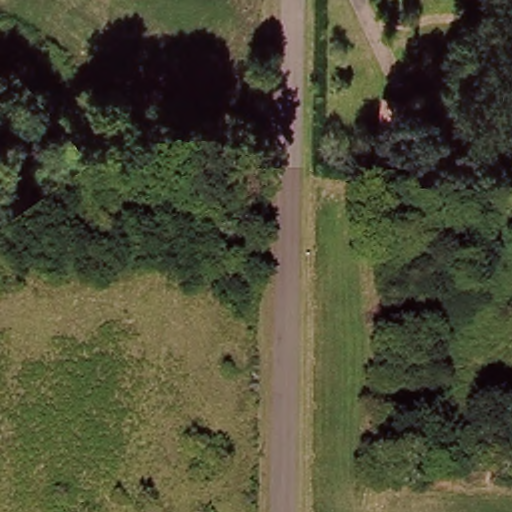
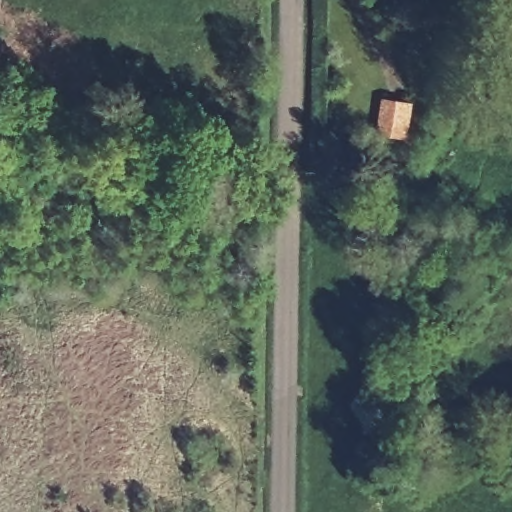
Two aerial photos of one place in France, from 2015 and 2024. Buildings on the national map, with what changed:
new [(378,135),(383,100),(414,104),(408,140),(378,135)]

